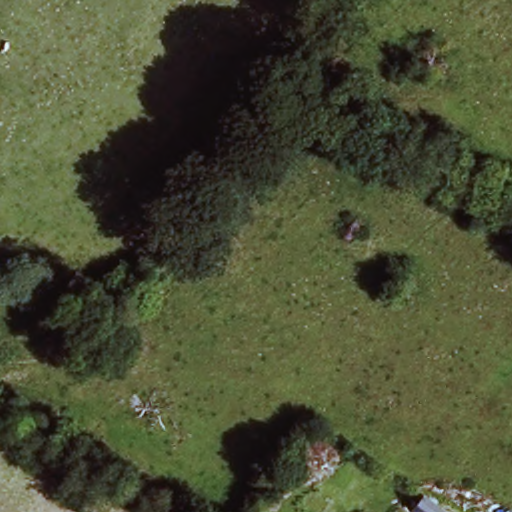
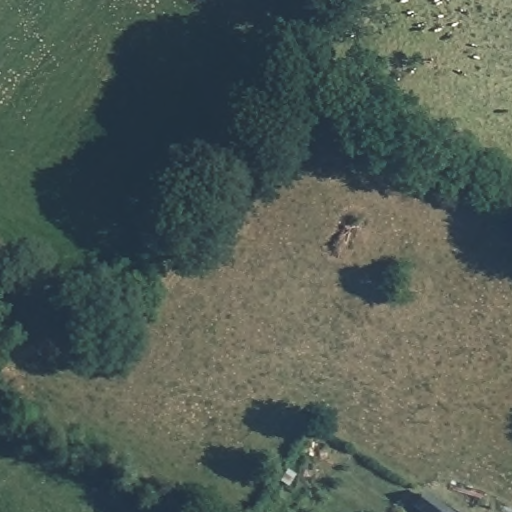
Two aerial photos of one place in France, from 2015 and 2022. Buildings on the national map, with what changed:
unchanged [(420,496),(442,512),(418,512),(413,508),(420,496)]

